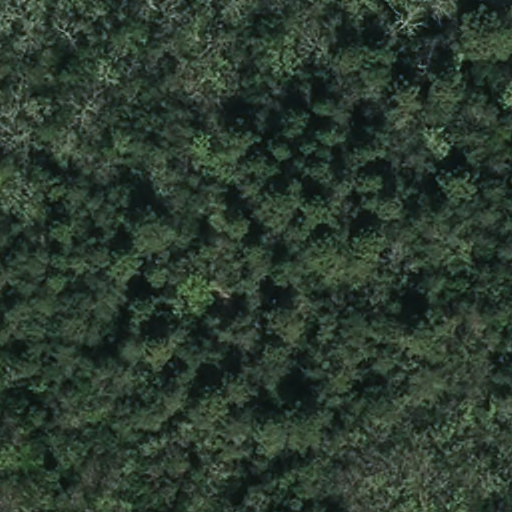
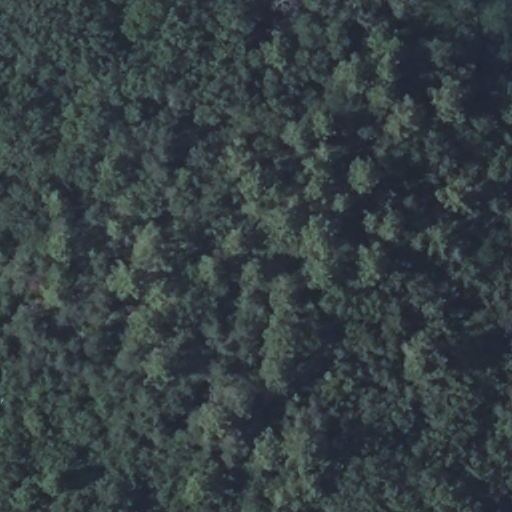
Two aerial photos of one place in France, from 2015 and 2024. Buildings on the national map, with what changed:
[]

